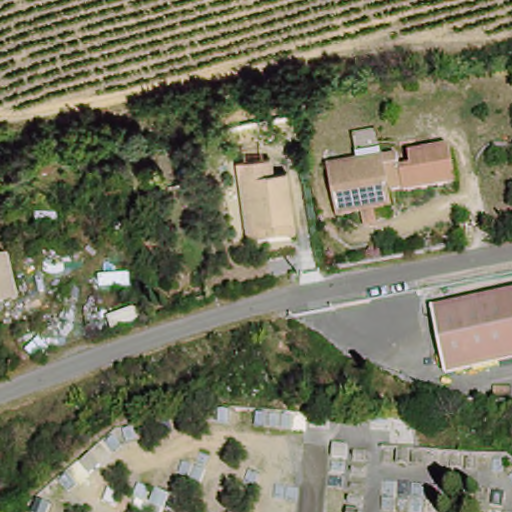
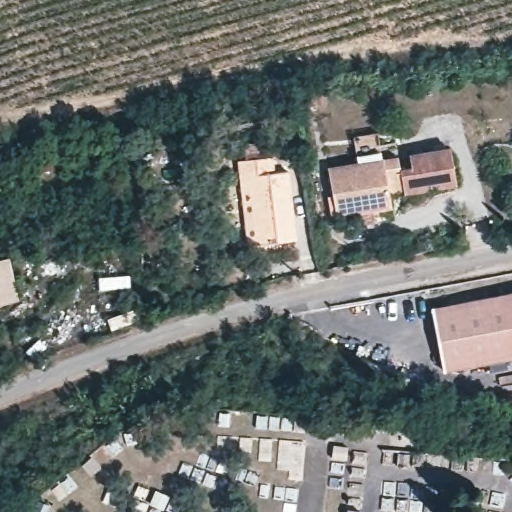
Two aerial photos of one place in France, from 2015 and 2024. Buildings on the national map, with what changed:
unchanged [(399,168),(412,165),(410,154),(449,148),(455,185),(404,194),(404,192),(399,169),(399,168)]
unchanged [(241,178),(239,162),(273,158),(274,174),(291,173),(298,242),(258,246),(249,248),(241,178)]
unchanged [(399,168),(399,169),(404,192),(383,196),(386,213),(332,222),(325,172),(398,158),(399,168)]
unchanged [(15,304),(0,306),(0,263),(10,263),(15,304)]
unchanged [(483,367),(445,374),(443,363),(433,312),(512,296),(512,361),(483,367)]

